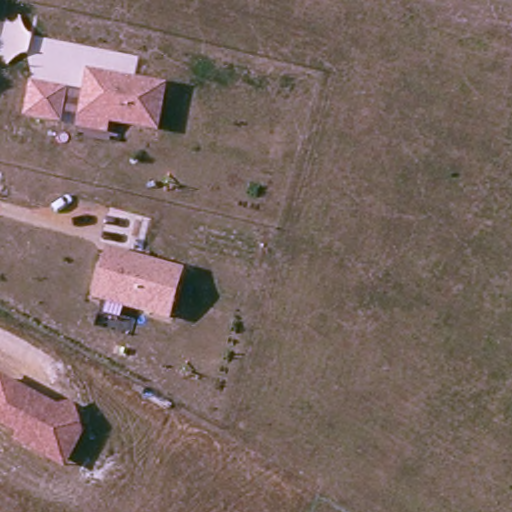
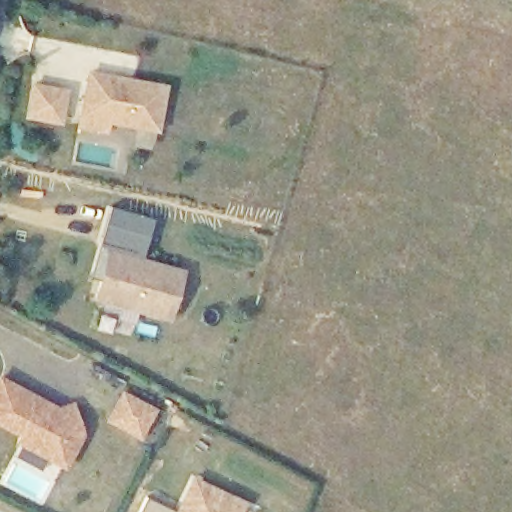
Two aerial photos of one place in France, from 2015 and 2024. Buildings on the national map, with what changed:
unchanged [(110,125),(107,132),(75,127),(86,70),(167,84),(159,130),(110,125)]
new [(68,90),(62,125),(23,118),(29,83),(68,90)]
new [(106,249),(98,279),(90,277),(108,205),(153,219),(142,258),(106,249)]
unchanged [(170,321),(92,301),(106,249),(183,270),(170,321)]
unchanged [(15,433),(0,425),(0,375),(56,405),(66,401),(75,406),(83,434),(63,470),(11,442),(15,433)]
new [(121,391),(157,410),(141,441),(105,422),(121,391)]
new [(241,512),(174,512),(190,476),(246,502),(241,512)]

